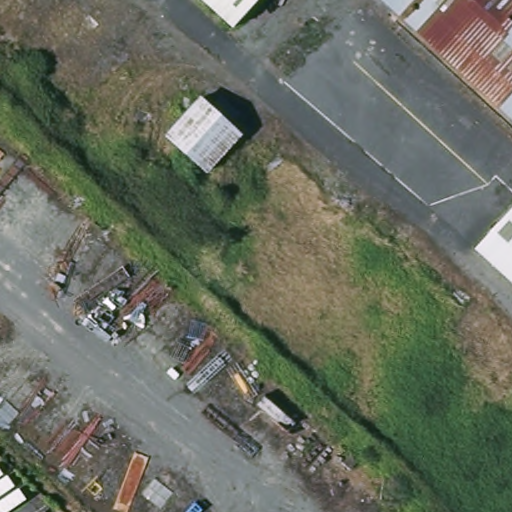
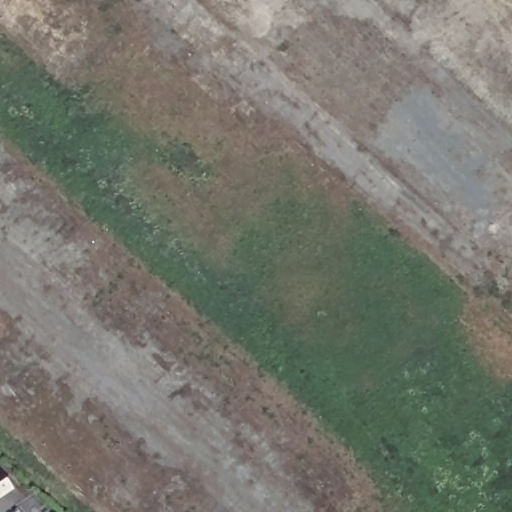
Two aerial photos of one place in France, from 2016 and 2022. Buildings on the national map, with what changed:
demolished [(234,25),(205,0),(256,0),(234,25)]
demolished [(512,114),(387,0),(512,0),(512,114)]
demolished [(243,134),(207,175),(162,134),(199,96),(243,134)]
demolished [(512,215),(512,283),(478,252),(512,215)]

